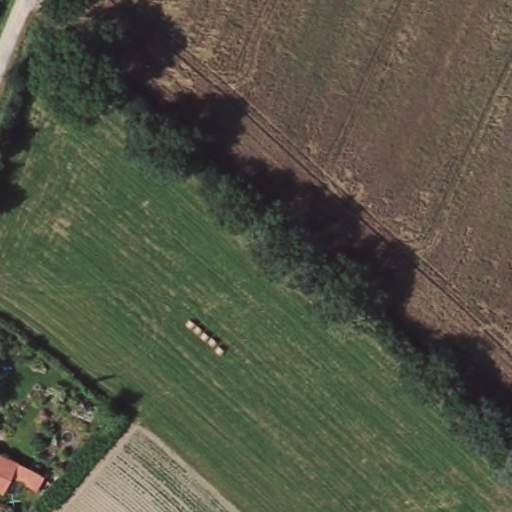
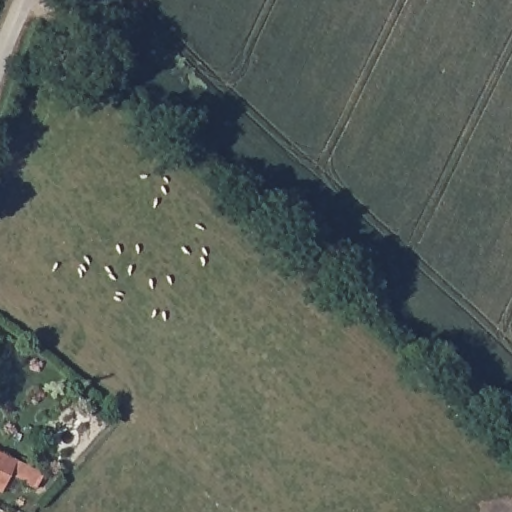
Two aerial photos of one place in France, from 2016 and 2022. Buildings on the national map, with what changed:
unchanged [(6,458),(42,474),(36,487),(9,475),(2,493),(0,493),(0,456),(6,458)]

